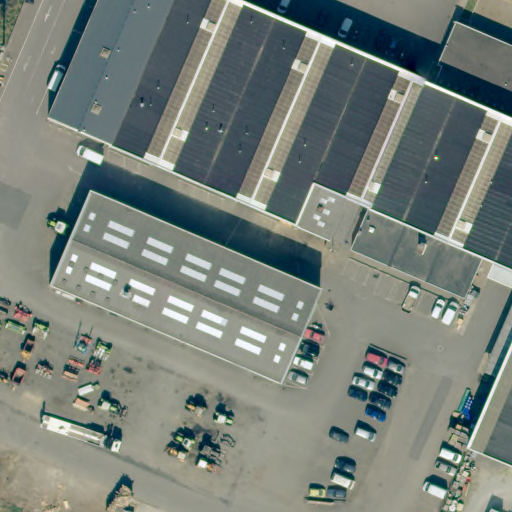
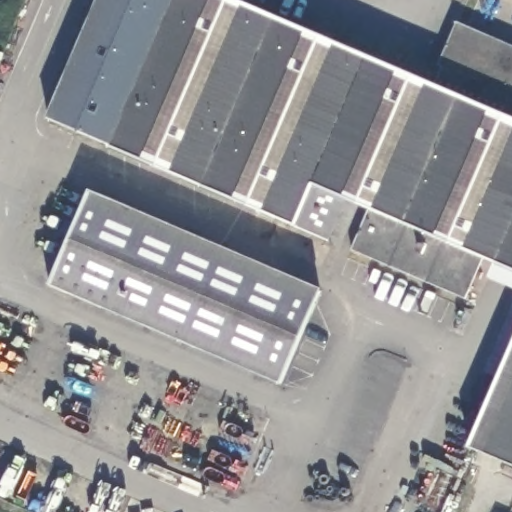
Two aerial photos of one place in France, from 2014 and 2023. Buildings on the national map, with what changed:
unchanged [(480,263),(465,295),(351,246),(369,205),(358,201),(342,239),(330,234),(329,236),(50,117),(100,0),(245,0),(434,80),(442,61),(438,60),(448,38),(512,66),(512,266),(483,254),(480,263)]
unchanged [(90,187),(321,286),(281,380),(50,280),(90,187)]
unchanged [(490,267),(480,263),(483,254),(512,266),(512,284),(488,273),(490,267)]
unchanged [(485,367),(512,304),(512,344),(499,374),(485,367)]
unchanged [(495,382),(499,374),(512,344),(512,462),(469,443),(495,382)]

